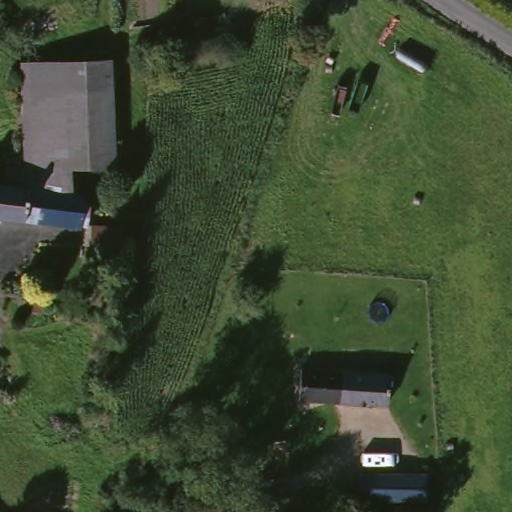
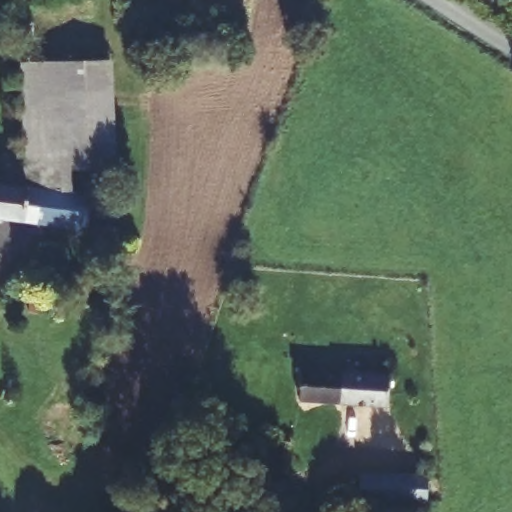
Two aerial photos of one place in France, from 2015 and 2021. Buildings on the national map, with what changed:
unchanged [(0,173),(20,170),(16,71),(106,66),(110,175),(68,177),(70,200),(3,190),(0,173)]
unchanged [(75,232),(74,236),(0,226),(0,190),(3,190),(70,200),(81,203),(79,212),(88,213),(85,234),(75,232)]
unchanged [(386,380),(383,410),(295,406),(298,375),(386,380)]
unchanged [(428,505),(360,501),(362,473),(430,476),(428,505)]

